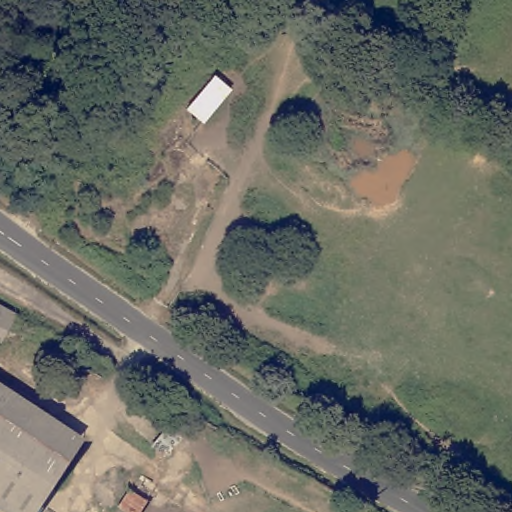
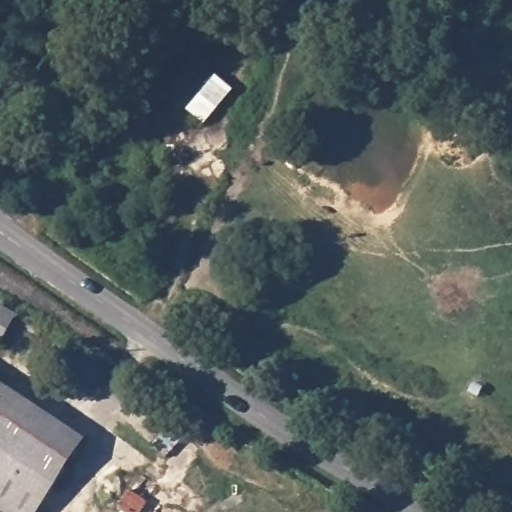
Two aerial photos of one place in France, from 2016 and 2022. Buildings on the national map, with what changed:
unchanged [(187,109),(215,72),(234,90),(204,124),(187,109)]
unchanged [(0,343),(0,312),(13,319),(0,343)]
unchanged [(0,373),(91,431),(62,476),(0,436),(0,373)]
unchanged [(0,436),(62,476),(38,512),(28,512),(0,494),(0,436)]

